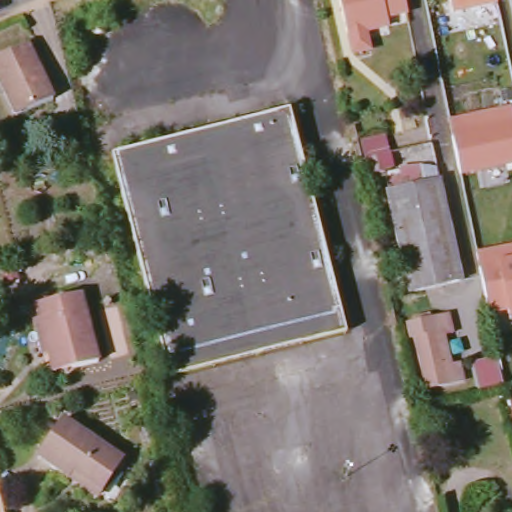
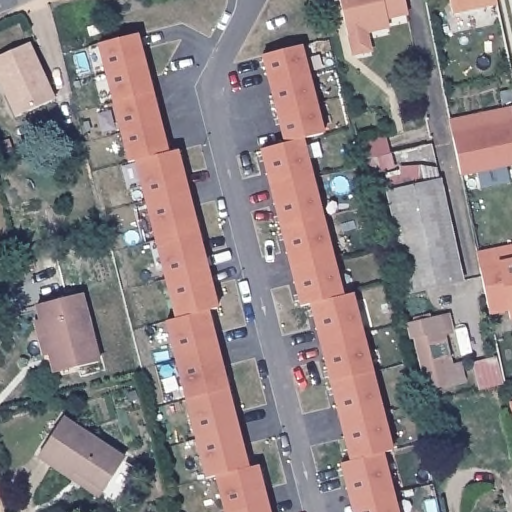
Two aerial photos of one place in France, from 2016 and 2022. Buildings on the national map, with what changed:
unchanged [(390,24),(390,31),(370,35),(373,53),(354,58),(340,0),(406,0),(409,15),(390,24)]
unchanged [(455,16),(451,0),(498,0),(499,7),(455,16)]
new [(217,306),(210,308),(245,466),(259,461),(271,512),(220,512),(210,476),(202,480),(160,319),(172,315),(130,160),(123,162),(97,45),(138,34),(168,152),(179,148),(217,306)]
new [(344,292),(352,291),(392,451),(383,452),(398,512),(348,512),(335,462),(347,461),(307,302),(296,307),(255,150),(283,144),(260,55),(305,42),(323,134),(305,140),(344,292)]
unchanged [(52,106),(15,122),(0,85),(0,65),(32,52),(52,106)]
unchanged [(464,179),(452,121),(512,109),(512,168),(464,179)]
demolished [(288,111),(344,335),(311,343),(268,117),(288,111)]
demolished [(311,343),(170,381),(115,157),(268,117),(311,343)]
unchanged [(368,174),(362,143),(388,136),(395,167),(368,174)]
unchanged [(405,297),(383,199),(420,190),(413,162),(430,159),(436,186),(456,285),(405,297)]
unchanged [(512,323),(509,313),(492,317),(478,255),(512,248),(512,323)]
unchanged [(48,361),(38,363),(31,331),(41,328),(35,309),(80,297),(96,367),(73,372),(52,377),(48,361)]
unchanged [(427,392),(414,340),(410,341),(407,326),(450,316),(457,337),(447,340),(455,366),(464,365),(468,381),(427,392)]
unchanged [(480,392),(474,364),(497,358),(505,387),(480,392)]
unchanged [(117,466),(97,497),(72,480),(69,485),(36,465),(61,427),(117,466)]

